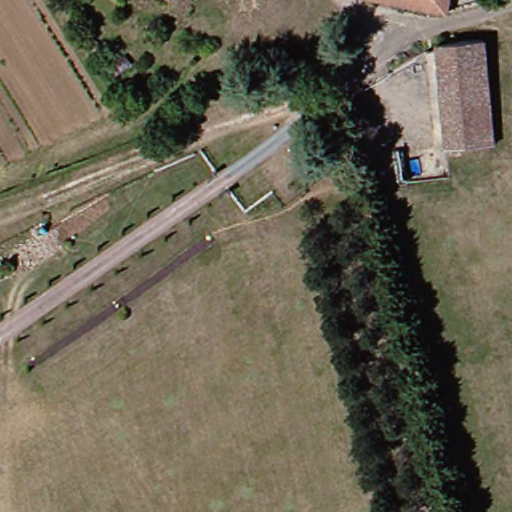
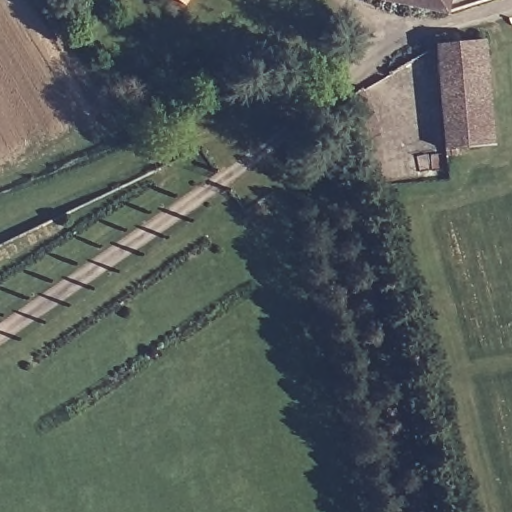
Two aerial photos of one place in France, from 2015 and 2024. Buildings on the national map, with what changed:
unchanged [(190,9),(179,0),(196,0),(190,9)]
unchanged [(453,17),(380,0),(456,0),(453,17)]
unchanged [(501,147),(455,153),(438,50),(485,43),(501,147)]

